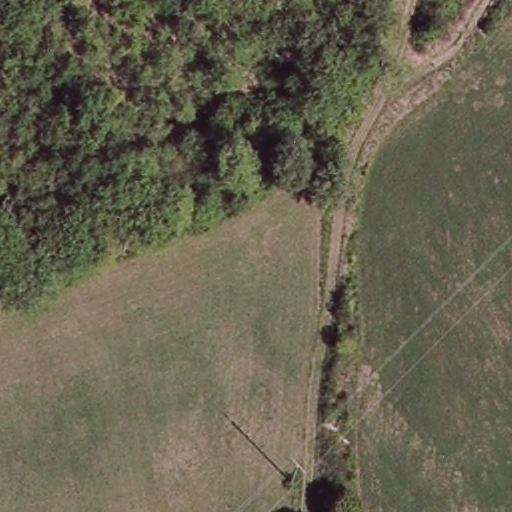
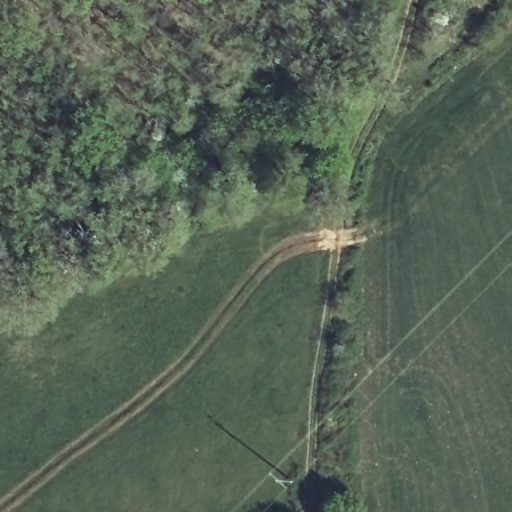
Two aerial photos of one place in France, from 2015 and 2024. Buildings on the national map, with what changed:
[]

